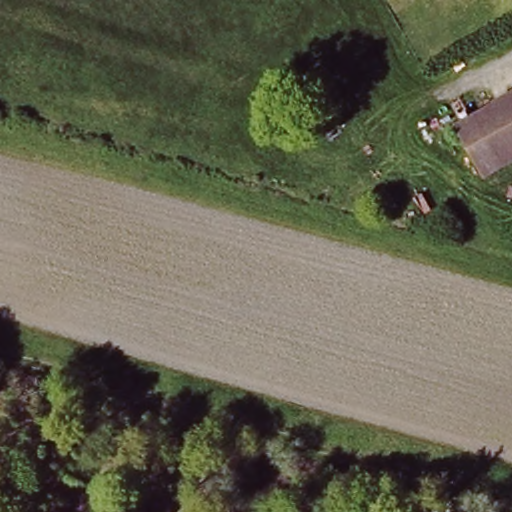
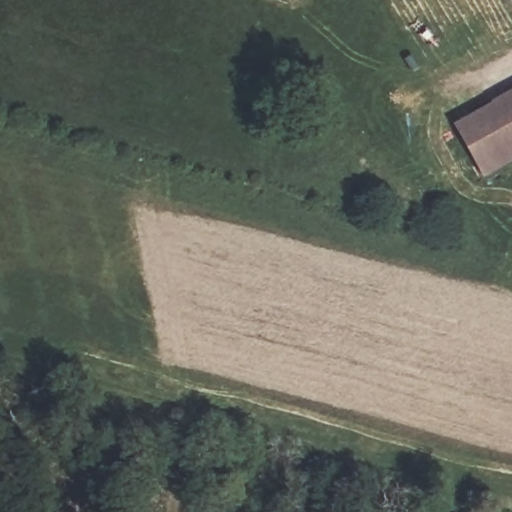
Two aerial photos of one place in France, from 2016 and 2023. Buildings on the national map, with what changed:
unchanged [(512,104),(512,153),(495,164),(474,127),(512,104)]

